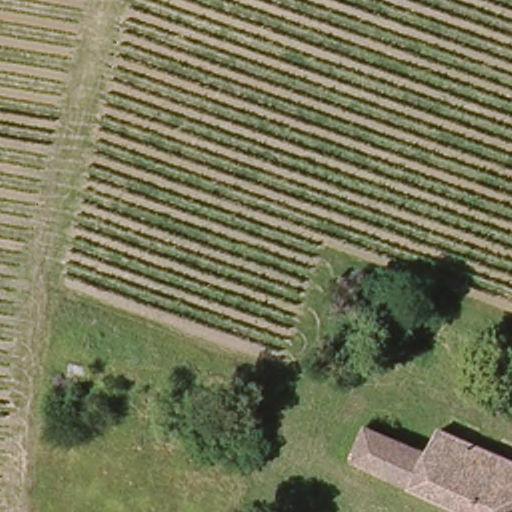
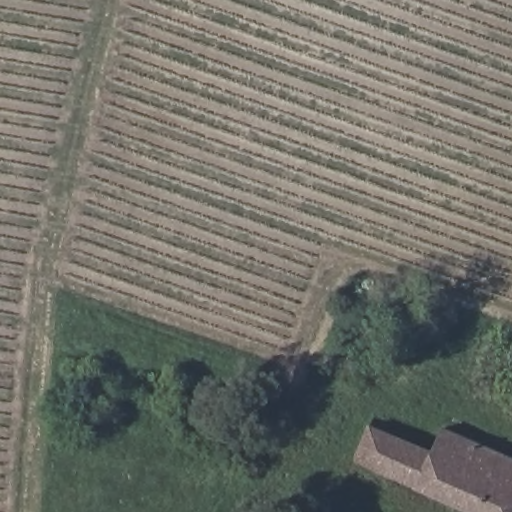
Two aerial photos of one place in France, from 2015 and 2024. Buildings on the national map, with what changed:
unchanged [(374,301),(364,322),(358,318),(366,297),(374,301)]
unchanged [(512,459),(512,512),(468,512),(355,460),(369,426),(428,452),(440,427),(512,459)]

